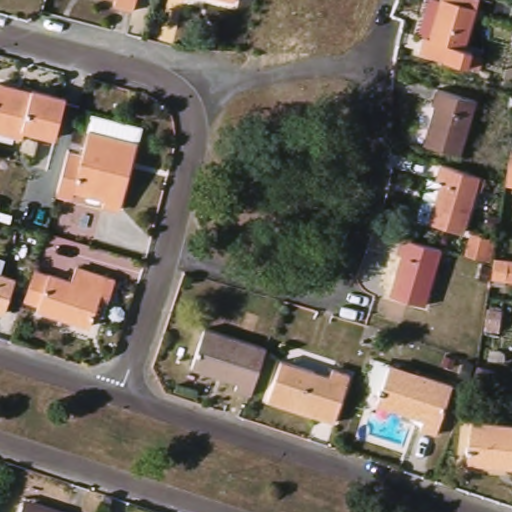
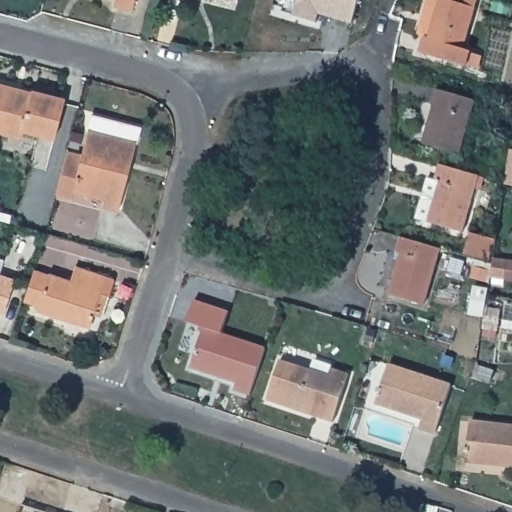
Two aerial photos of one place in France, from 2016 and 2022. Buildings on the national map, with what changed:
unchanged [(113,4),(114,0),(134,0),(132,9),(113,4)]
unchanged [(234,0),(234,1),(230,0),(234,0)]
new [(360,0),(353,24),(331,17),(332,13),(324,11),(319,13),(316,22),(293,15),(298,0),(360,0)]
unchanged [(470,69),(423,54),(428,39),(433,40),(436,31),(424,27),(432,0),(439,0),(444,2),(444,0),(476,0),(482,2),(479,11),(467,51),(475,53),(470,69)]
unchanged [(25,126),(23,133),(0,127),(0,81),(31,89),(33,87),(66,96),(56,134),(25,126)]
unchanged [(426,144),(438,106),(436,105),(440,90),(479,102),(463,156),(426,144)]
unchanged [(92,122),(141,135),(136,150),(120,216),(103,212),(105,204),(74,196),(72,203),(57,199),(68,159),(70,149),(85,153),(89,137),(92,122)]
unchanged [(512,152),(512,186),(504,185),(504,184),(509,152),(512,152)]
unchanged [(427,172),(434,175),(439,160),(478,171),(461,227),(427,217),(415,213),(427,172)]
unchanged [(501,224),(491,222),(493,212),(503,214),(501,224)]
unchanged [(493,236),(487,255),(465,249),(470,230),(493,236)]
unchanged [(394,294),(406,254),(401,252),(405,237),(431,245),(445,249),(428,305),(394,294)]
unchanged [(490,273),(492,260),(493,254),(506,256),(503,276),(502,280),(489,278),(490,273)]
unchanged [(0,273),(0,258),(5,260),(0,273)]
unchanged [(95,315),(91,326),(38,308),(39,305),(25,300),(35,270),(71,282),(76,268),(115,281),(110,296),(103,317),(95,315)]
unchanged [(0,311),(0,273),(16,278),(5,312),(0,311)]
unchanged [(506,305),(502,325),(488,322),(491,302),(506,305)]
unchanged [(266,350),(251,396),(234,391),(237,383),(191,368),(204,329),(266,350)]
unchanged [(467,355),(475,357),(471,372),(462,368),(467,355)]
unchanged [(281,361),(329,377),(331,370),(349,376),(333,423),(317,418),(318,416),(295,407),(294,410),(267,401),(281,361)]
unchanged [(393,363),(455,384),(440,430),(424,425),(427,416),(381,400),(393,363)]
unchanged [(512,424),(512,464),(470,459),(475,420),(512,424)]
unchanged [(23,502),(25,496),(64,509),(63,512),(19,512),(23,502)]

